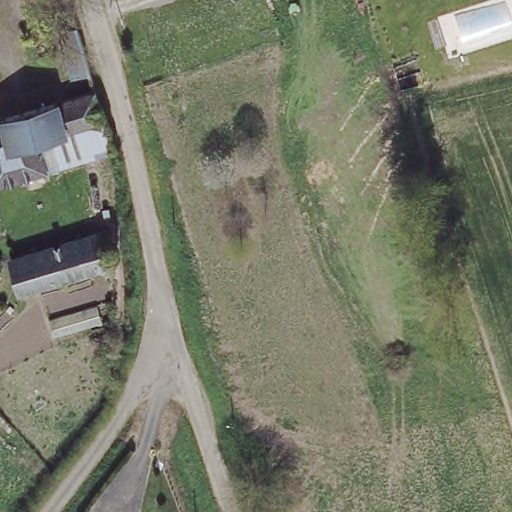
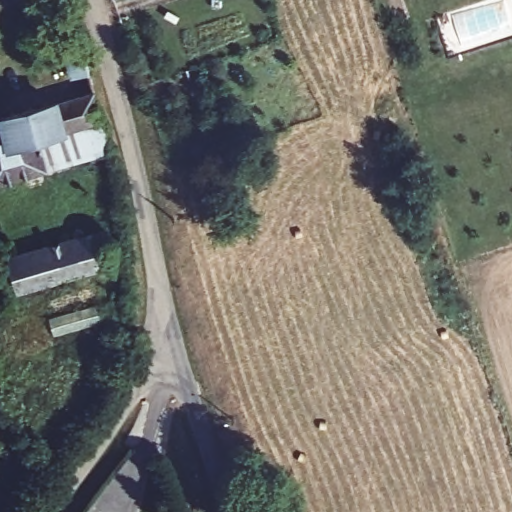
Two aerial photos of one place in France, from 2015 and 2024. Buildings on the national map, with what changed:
unchanged [(97,100),(106,157),(0,175),(0,119),(97,100)]
unchanged [(117,226),(123,266),(103,270),(103,278),(8,296),(3,247),(117,226)]

